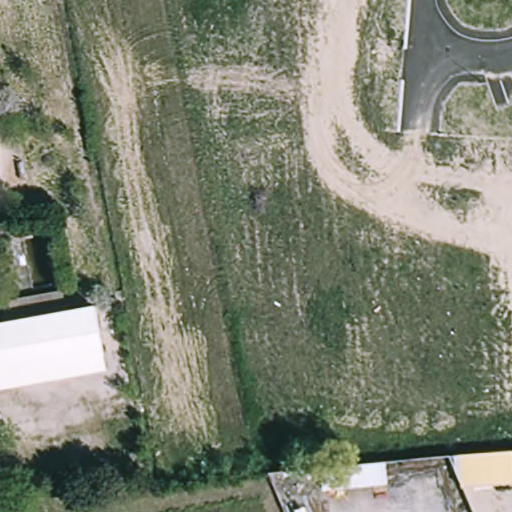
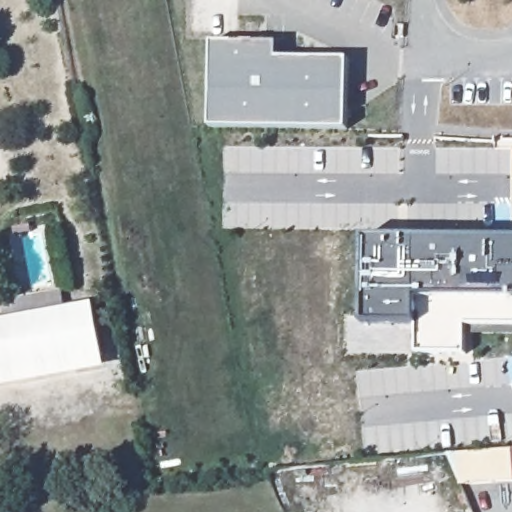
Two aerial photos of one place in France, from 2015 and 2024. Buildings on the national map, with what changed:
new [(209,40),(276,40),(276,55),(346,56),(345,126),(208,125),(209,40)]
new [(467,356),(417,355),(417,327),(363,327),(364,239),(512,240),(512,327),(467,327),(467,356)]
unchanged [(92,319),(100,367),(0,385),(0,337),(92,319)]
unchanged [(455,477),(453,444),(509,443),(510,477),(455,477)]
new [(320,467),(386,461),(387,483),(322,490),(320,467)]

